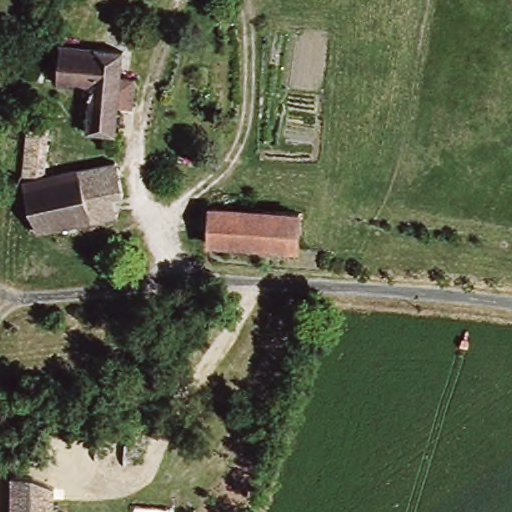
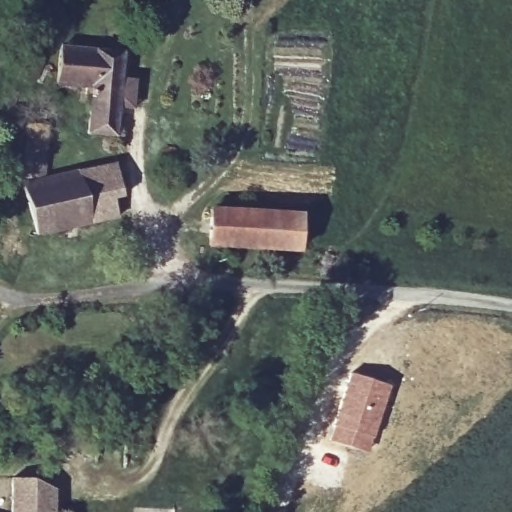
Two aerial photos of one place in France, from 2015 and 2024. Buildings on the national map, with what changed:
unchanged [(93,137),(97,87),(56,84),(59,49),(125,54),(119,139),(93,137)]
unchanged [(85,225),(31,233),(19,185),(25,127),(46,130),(40,184),(114,170),(120,201),(109,204),(111,219),(85,225)]
unchanged [(208,212),(299,219),(296,253),(207,247),(208,212)]
new [(349,372),(389,385),(367,452),(326,440),(349,372)]
unchanged [(116,442),(144,377),(171,387),(135,473),(49,467),(52,438),(116,442)]
unchanged [(64,487),(62,512),(13,512),(17,481),(64,487)]
unchanged [(181,512),(144,512),(146,491),(183,494),(181,512)]

